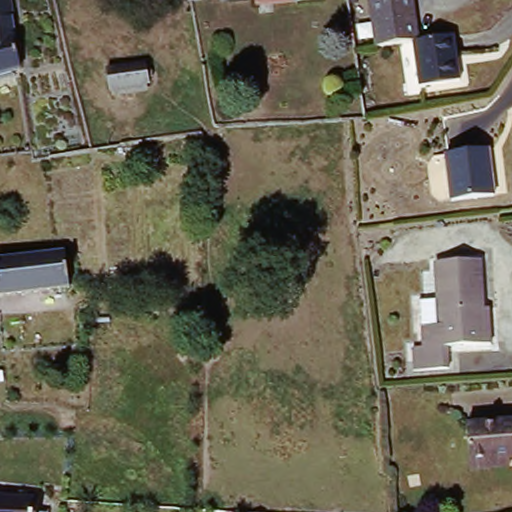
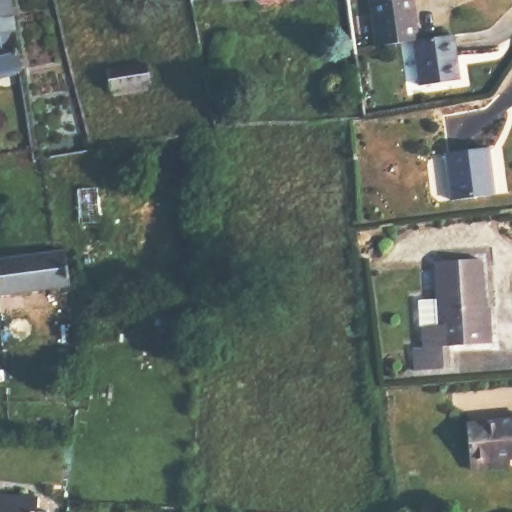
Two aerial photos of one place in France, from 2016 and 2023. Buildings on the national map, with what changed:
unchanged [(14,0),(25,73),(0,80),(0,0),(14,0)]
unchanged [(231,1),(231,0),(258,0),(231,3),(231,1)]
unchanged [(304,0),(327,0),(304,4),(304,0)]
unchanged [(413,40),(380,45),(373,0),(414,0),(420,39),(413,40)]
unchanged [(455,33),(463,77),(420,85),(413,40),(420,39),(455,33)]
unchanged [(113,91),(109,71),(112,70),(148,63),(151,76),(153,82),(116,90),(113,91)]
unchanged [(493,149),(498,192),(457,198),(451,154),(493,149)]
unchanged [(0,293),(0,257),(62,250),(69,249),(72,285),(0,293)]
unchanged [(445,348),(446,369),(411,371),(410,349),(423,348),(422,328),(418,329),(418,303),(436,302),(434,263),(480,261),(482,308),(488,309),(489,324),(490,345),(445,348)]
unchanged [(473,465),(470,427),(512,422),(512,468),(475,472),(473,465)]
unchanged [(39,499),(38,512),(0,512),(0,496),(39,499)]

